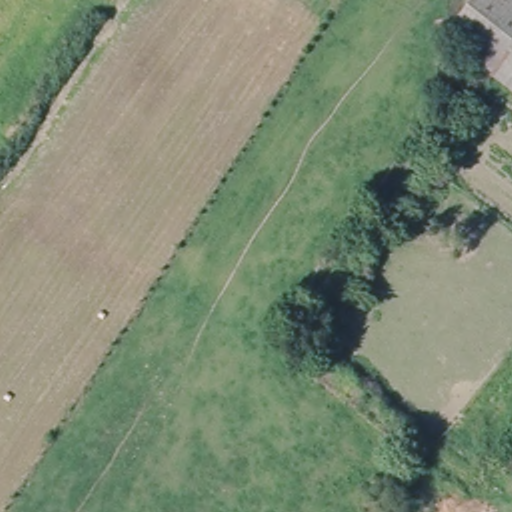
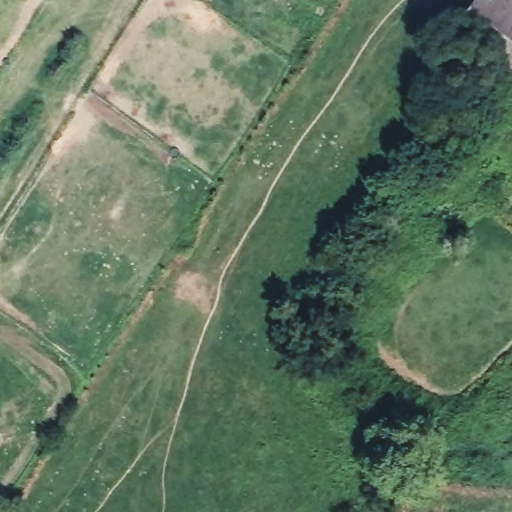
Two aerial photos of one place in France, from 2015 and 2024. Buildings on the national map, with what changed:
unchanged [(477,0),(512,0),(512,64),(500,79),(447,35),(477,0)]
unchanged [(512,64),(512,89),(500,79),(512,64)]

